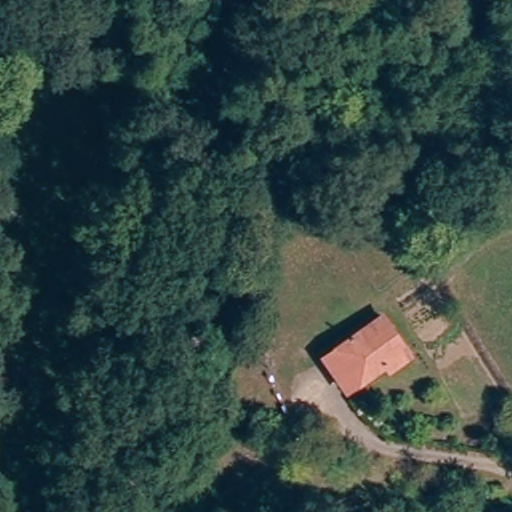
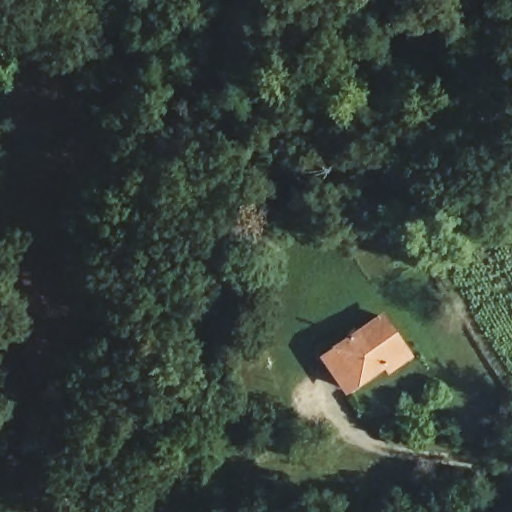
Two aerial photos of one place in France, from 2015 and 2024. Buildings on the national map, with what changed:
unchanged [(380,368),(336,384),(324,348),(390,320),(405,360),(409,371),(384,380),(380,368)]

